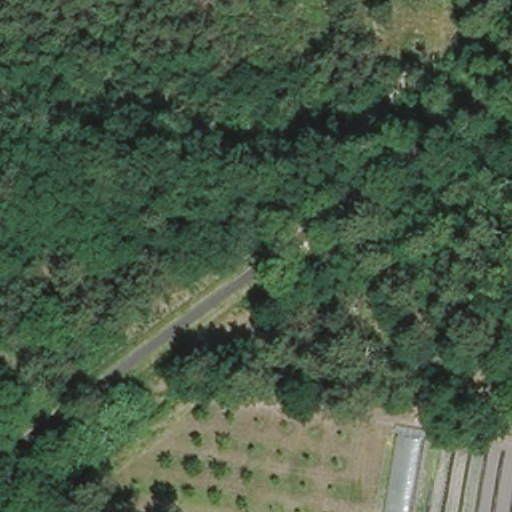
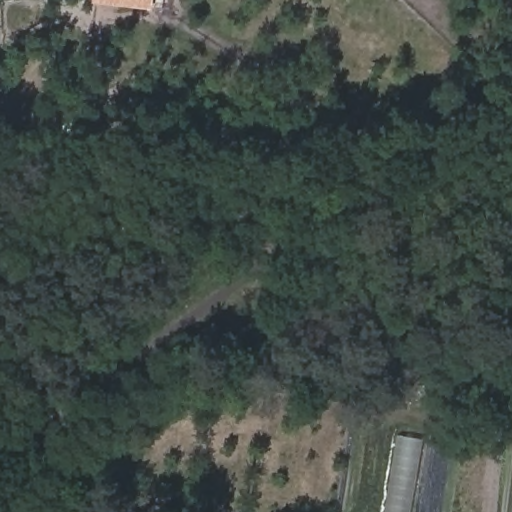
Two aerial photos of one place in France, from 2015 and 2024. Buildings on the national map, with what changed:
new [(91,0),(152,0),(151,9),(91,3),(91,0)]

